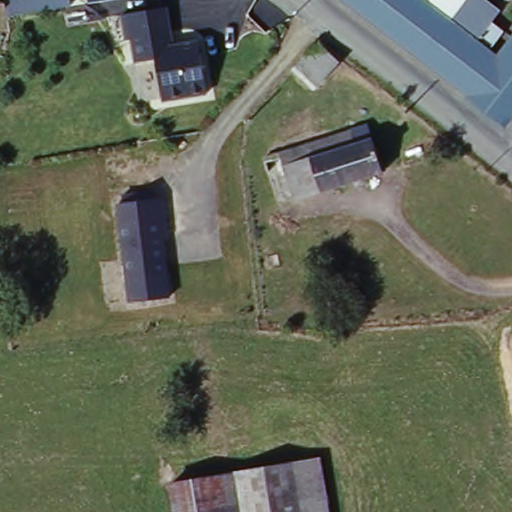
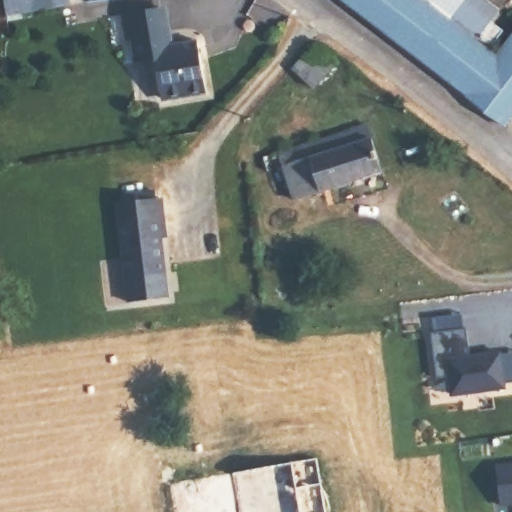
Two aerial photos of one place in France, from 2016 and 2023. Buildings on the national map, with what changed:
new [(70,6),(8,18),(4,0),(70,0),(70,6)]
demolished [(72,2),(12,12),(9,0),(72,0),(72,2)]
unchanged [(91,2),(91,0),(101,0),(91,2)]
unchanged [(503,9),(495,20),(507,28),(493,49),(500,52),(512,34),(512,133),(511,134),(342,0),(492,0),(503,9)]
unchanged [(165,4),(172,40),(200,34),(207,89),(165,96),(158,59),(135,62),(122,13),(165,4)]
unchanged [(318,41),(338,57),(314,84),(294,67),(318,41)]
unchanged [(284,169),(265,172),(261,154),(372,126),(384,174),(292,199),(284,169)]
unchanged [(117,195),(161,194),(160,216),(166,296),(126,297),(120,217),(117,195)]
new [(501,387),(447,393),(445,376),(433,377),(427,331),(430,331),(428,316),(458,312),(460,327),(462,327),(466,355),(477,353),(496,351),(496,352),(512,351),(512,381),(500,382),(501,387)]
unchanged [(327,512),(230,512),(225,468),(321,457),(327,512)]
new [(488,462),(512,460),(512,502),(491,503),(488,462)]
unchanged [(225,468),(230,512),(177,512),(172,473),(225,468)]

